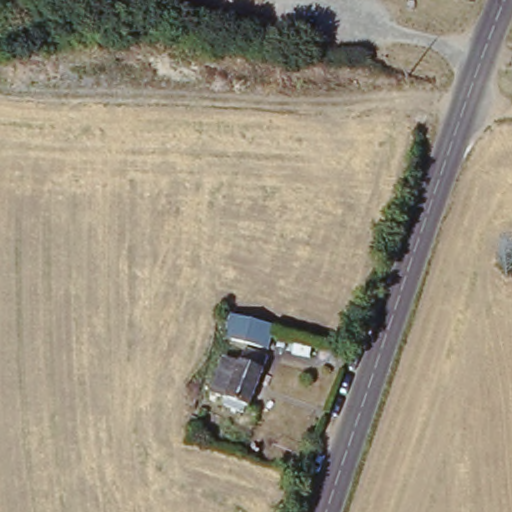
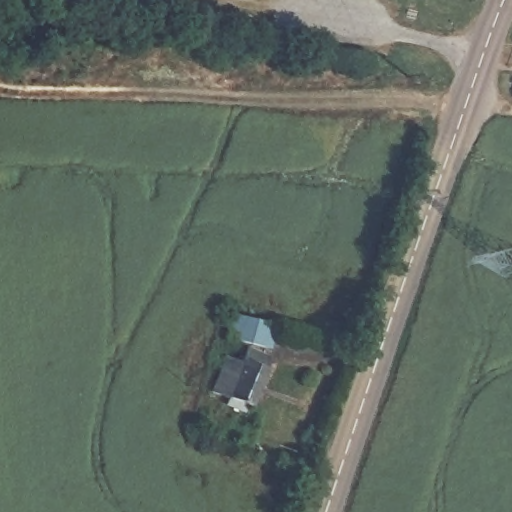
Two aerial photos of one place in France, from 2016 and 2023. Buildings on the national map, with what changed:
unchanged [(276,328),(270,350),(227,339),(232,316),(276,328)]
unchanged [(248,407),(220,396),(221,394),(207,390),(221,356),(227,358),(233,345),(268,357),(248,407)]

